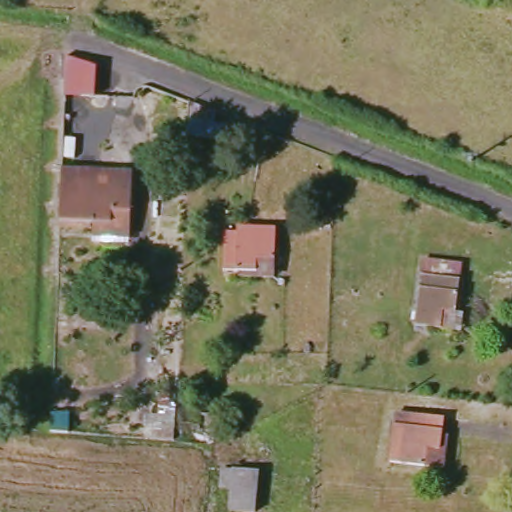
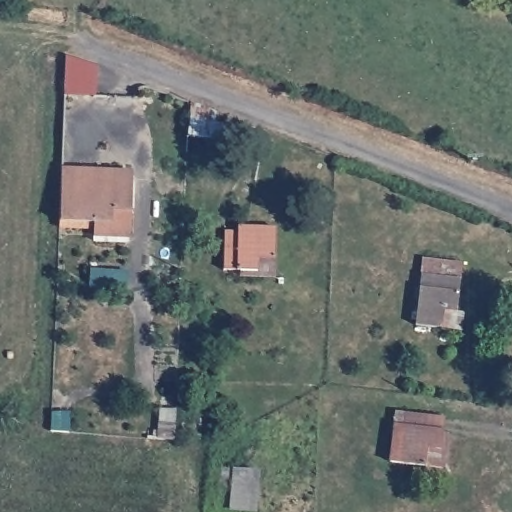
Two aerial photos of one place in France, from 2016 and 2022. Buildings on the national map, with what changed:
unchanged [(96,68),(95,100),(64,95),(65,55),(96,68)]
unchanged [(183,139),(183,125),(228,126),(227,141),(183,139)]
unchanged [(137,213),(117,212),(117,225),(64,224),(65,172),(86,172),(124,173),(124,186),(137,186),(137,213)]
unchanged [(224,272),(224,233),(276,234),(277,251),(281,251),(280,272),(259,272),(224,272)]
unchanged [(414,326),(424,254),(459,258),(454,314),(459,315),(457,331),(437,328),(414,326)]
unchanged [(398,462),(402,413),(440,418),(439,434),(447,435),(447,451),(445,467),(422,464),(398,462)]
unchanged [(221,487),(222,470),(255,473),(251,512),(229,512),(231,488),(221,487)]

